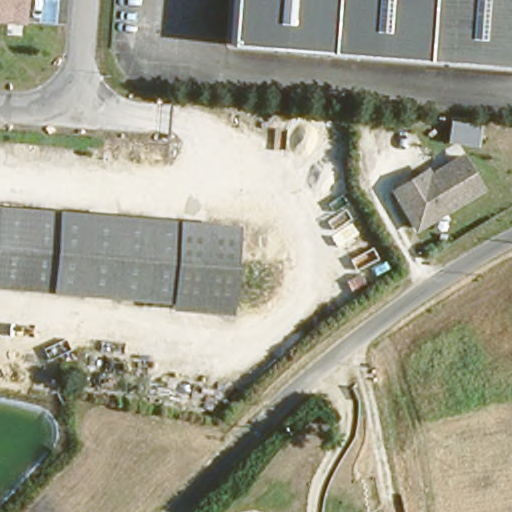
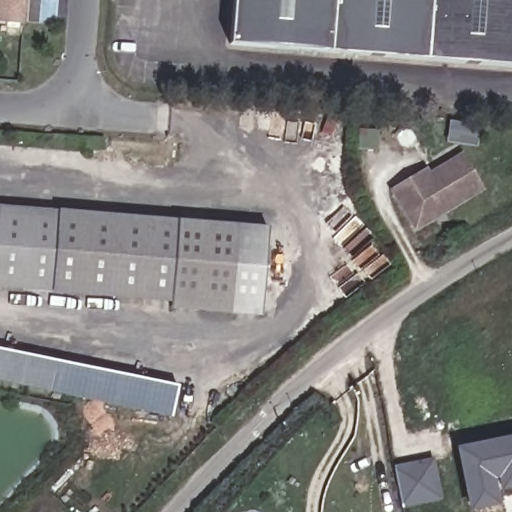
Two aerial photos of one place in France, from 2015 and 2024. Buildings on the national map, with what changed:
unchanged [(27,21),(0,18),(0,0),(29,0),(27,21)]
unchanged [(227,39),(230,0),(512,0),(512,60),(448,56),(227,39)]
unchanged [(393,188),(428,172),(432,181),(437,179),(435,174),(465,161),(481,195),(412,227),(393,188)]
unchanged [(81,205),(231,215),(225,301),(165,297),(165,290),(76,284),(0,279),(0,200),(81,205)]
new [(225,301),(230,224),(269,227),(260,316),(172,310),(174,297),(225,301)]
new [(0,381),(0,350),(178,386),(172,415),(0,381)]
new [(472,512),(468,512),(456,448),(512,436),(512,490),(498,493),(500,505),(472,512)]
new [(436,459),(443,501),(402,509),(395,465),(436,459)]

